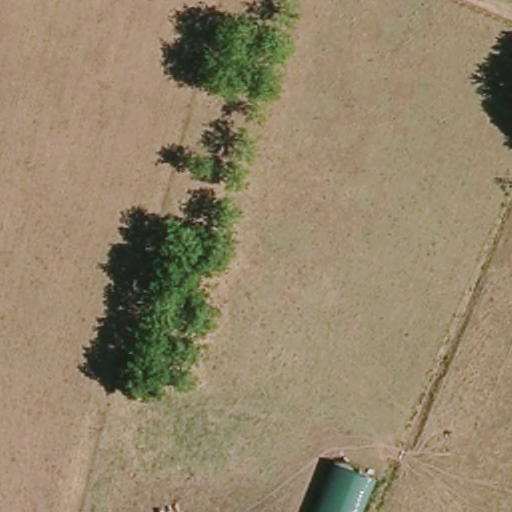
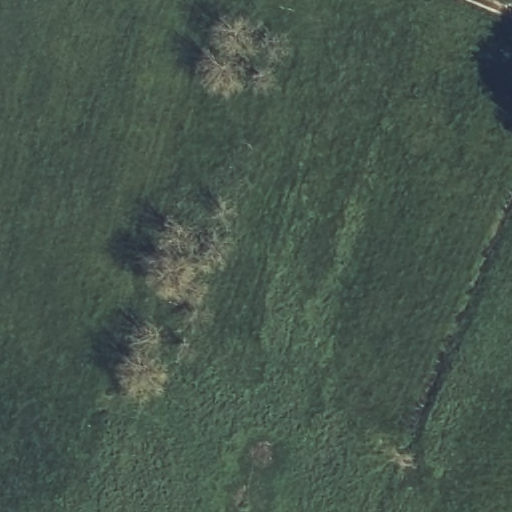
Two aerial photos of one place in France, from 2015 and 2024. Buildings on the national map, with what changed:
demolished [(307,512),(329,462),(370,480),(357,512),(307,512)]

